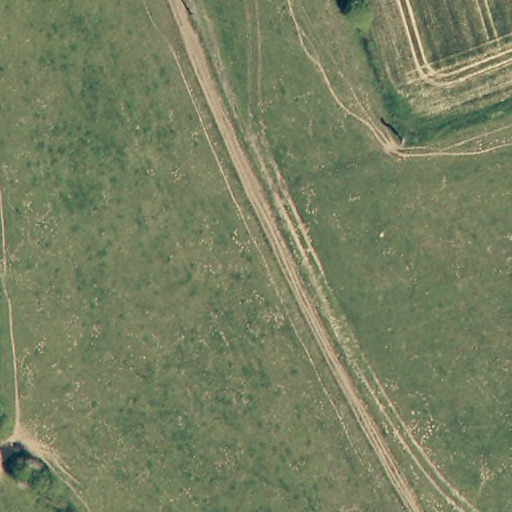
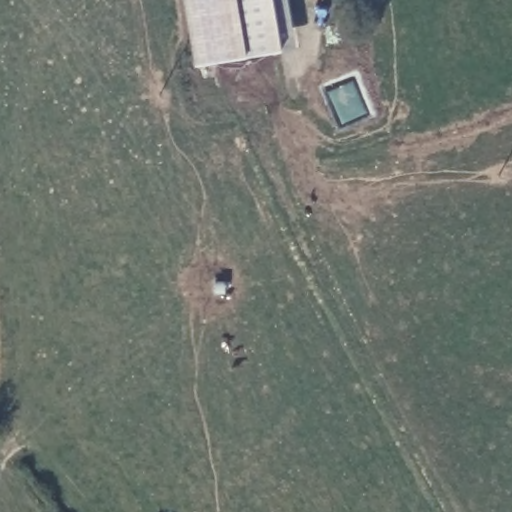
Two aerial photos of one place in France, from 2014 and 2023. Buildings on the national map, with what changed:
new [(294,48),(194,66),(182,0),(286,0),(294,48)]

